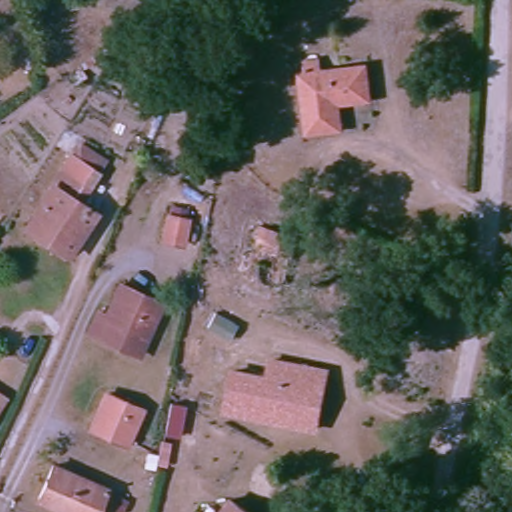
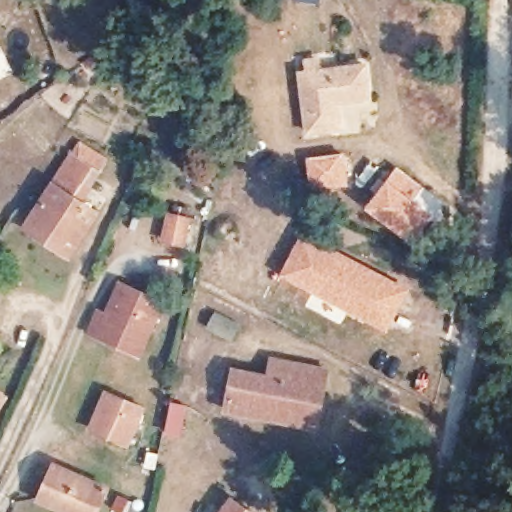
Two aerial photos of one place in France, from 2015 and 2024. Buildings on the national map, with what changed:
unchanged [(124,51),(138,59),(126,79),(112,71),(124,51)]
unchanged [(339,131),(301,134),(301,126),(297,73),(303,73),(302,62),(315,61),(316,71),(364,68),(366,99),(337,101),(339,124),(339,131)]
new [(343,153),(347,187),(308,191),(304,158),(343,153)]
new [(396,166),(448,206),(415,248),(363,209),(396,166)]
unchanged [(70,258),(27,231),(58,185),(64,176),(87,190),(77,205),(96,218),(92,223),(70,258)]
unchanged [(181,248),(163,244),(168,223),(186,227),(181,248)]
demolished [(285,291),(247,280),(257,249),(263,228),(302,242),(285,291)]
new [(300,233),(337,250),(410,287),(386,333),(343,311),(277,274),(300,233)]
unchanged [(95,341),(85,336),(94,317),(100,320),(115,292),(155,310),(148,325),(133,359),(95,341)]
new [(213,310),(240,325),(230,342),(204,327),(213,310)]
unchanged [(231,366),(266,373),(269,357),(331,371),(318,433),(221,414),(231,366)]
unchanged [(84,428),(90,416),(101,394),(127,407),(135,412),(133,416),(119,444),(109,440),(97,434),(92,432),(84,428)]
unchanged [(0,406),(0,400),(2,402),(0,406)]
unchanged [(166,437),(172,408),(187,411),(181,441),(166,437)]
unchanged [(50,512),(27,503),(42,468),(50,471),(55,460),(74,469),(70,480),(97,492),(88,512),(50,512)]
unchanged [(232,512),(216,512),(222,504),(232,512)]

